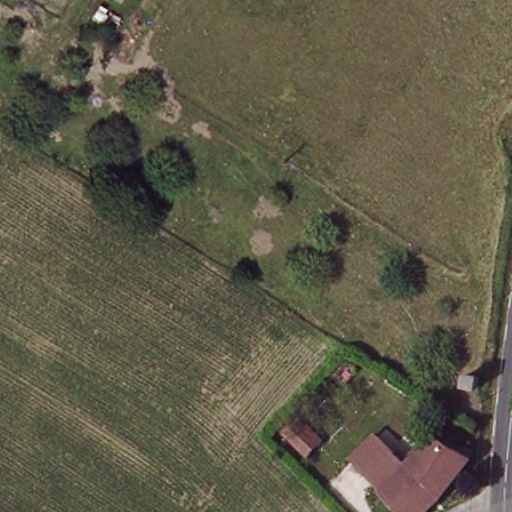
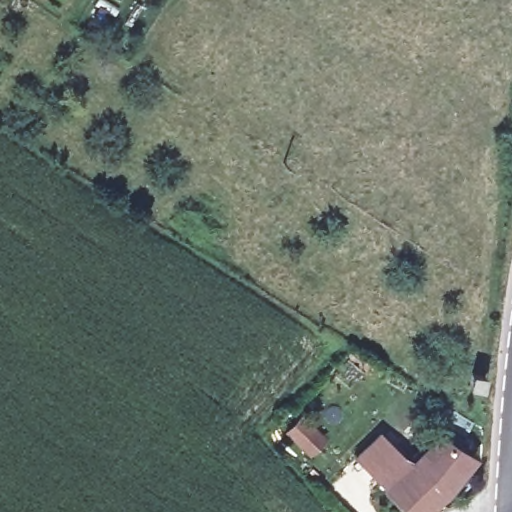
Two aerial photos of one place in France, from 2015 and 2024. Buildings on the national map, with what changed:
unchanged [(357,459),(379,437),(412,465),(387,488),(357,459)]
unchanged [(440,437),(462,456),(467,459),(443,487),(418,512),(411,512),(387,488),(412,465),(440,437)]

